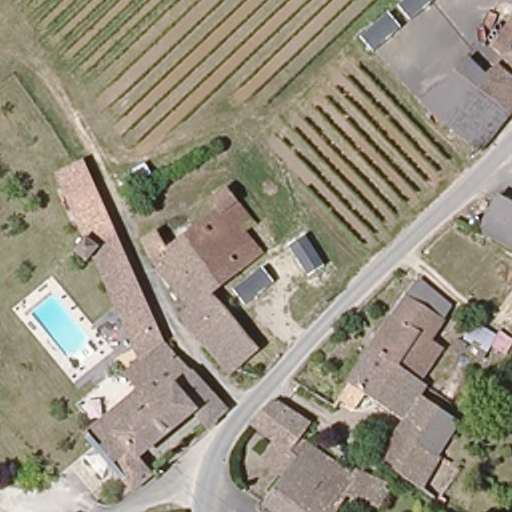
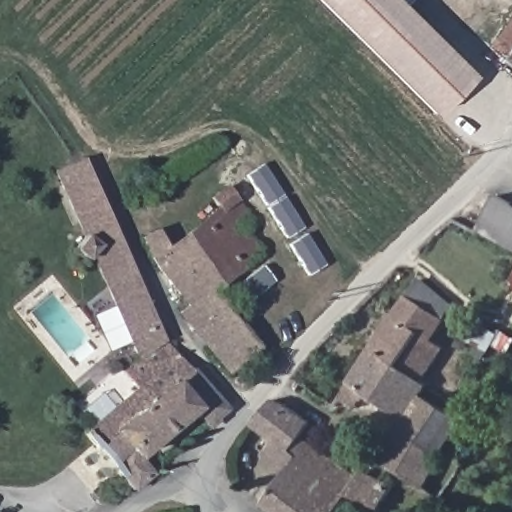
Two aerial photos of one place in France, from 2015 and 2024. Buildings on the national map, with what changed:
new [(321,0),(400,0),(475,74),(436,115),(321,0)]
unchanged [(503,24),(512,13),(512,30),(503,24)]
unchanged [(498,55),(512,36),(512,66),(498,55)]
demolished [(496,128),(477,150),(421,99),(465,56),(485,72),(492,64),(512,81),(512,109),(496,128)]
unchanged [(162,334),(138,354),(54,174),(84,159),(162,334)]
unchanged [(228,187),(255,222),(245,230),(261,250),(213,290),(262,346),(234,371),(182,311),(190,302),(157,262),(147,236),(159,230),(172,247),(221,203),(215,196),(228,187)]
unchanged [(480,226),(499,192),(512,200),(512,245),(480,226)]
unchanged [(369,346),(415,279),(450,303),(428,335),(443,346),(420,380),(369,346)]
unchanged [(195,407),(142,454),(154,468),(135,484),(87,426),(139,382),(127,368),(165,334),(229,405),(209,422),(195,407)]
unchanged [(426,384),(420,393),(438,406),(421,432),(402,419),(362,393),(352,407),(337,397),(369,346),(420,380),(426,384)]
unchanged [(283,399),(302,414),(307,418),(298,430),(347,467),(352,471),(353,470),(357,465),(367,470),(381,476),(389,480),(376,503),(345,491),(329,512),(278,512),(259,498),(279,471),(259,450),(271,434),(249,417),(253,413),(267,396),(283,399)]
unchanged [(395,429),(402,419),(421,432),(438,406),(458,421),(437,455),(395,429)]
unchanged [(437,455),(418,489),(388,470),(374,460),(395,429),(437,455)]

